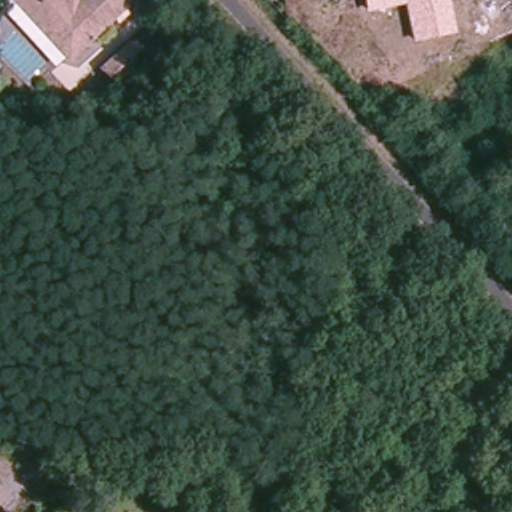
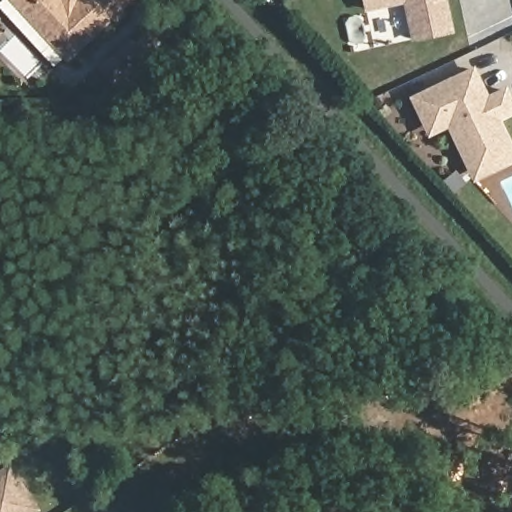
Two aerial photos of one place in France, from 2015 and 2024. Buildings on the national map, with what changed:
unchanged [(55,47),(40,54),(12,21),(20,13),(7,0),(134,0),(67,58),(55,47)]
unchanged [(409,41),(403,5),(365,11),(363,0),(448,0),(454,33),(409,41)]
unchanged [(116,90),(98,67),(148,29),(162,44),(145,57),(152,61),(116,90)]
new [(408,96),(474,65),(488,94),(506,86),(512,97),(512,115),(501,120),(512,143),(512,162),(472,182),(448,128),(428,138),(408,96)]
new [(35,512),(0,512),(0,468),(9,462),(39,510),(35,512)]

